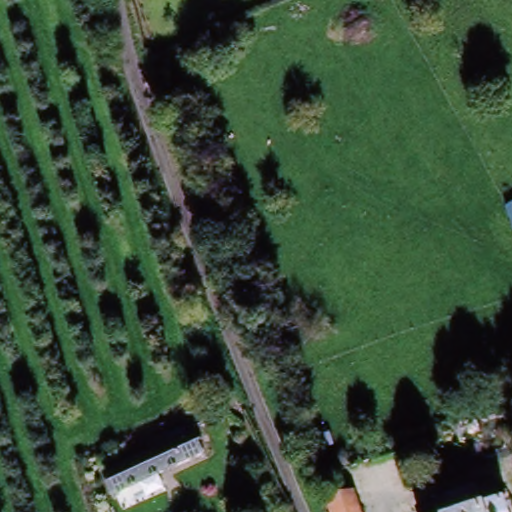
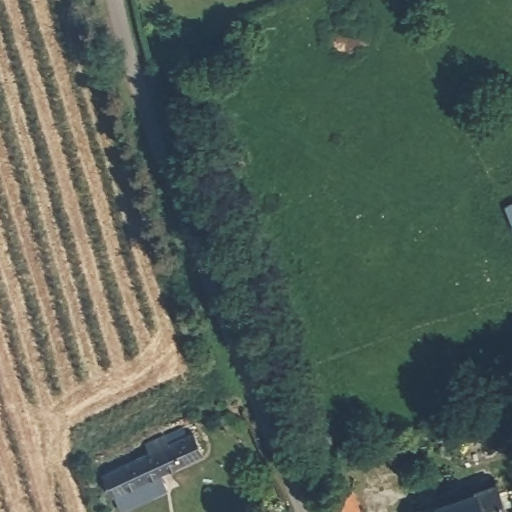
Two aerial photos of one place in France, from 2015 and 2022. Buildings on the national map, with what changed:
unchanged [(219,449),(113,502),(103,479),(171,444),(166,434),(178,427),(184,438),(207,426),(219,449)]
unchanged [(293,443),(332,432),(339,457),(300,469),(293,443)]
unchanged [(506,512),(421,512),(494,483),(506,512)]
unchanged [(357,512),(342,512),(355,506),(357,512)]

